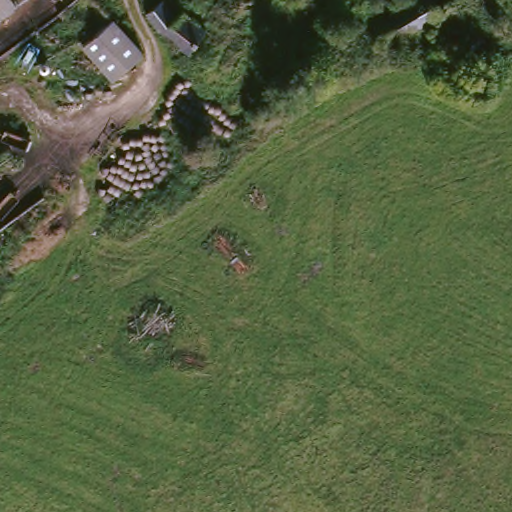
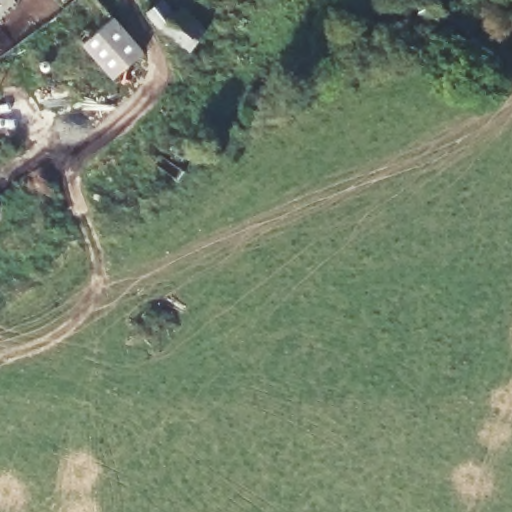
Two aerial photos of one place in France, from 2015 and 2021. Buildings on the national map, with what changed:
unchanged [(91,22),(80,30),(54,0),(92,0),(101,12),(91,22)]
unchanged [(387,40),(383,34),(372,39),(362,25),(405,0),(454,0),(445,6),(432,14),(394,35),(387,40)]
unchanged [(478,0),(498,35),(478,49),(451,64),(428,26),(439,17),(469,0),(478,0)]
unchanged [(0,15),(0,4),(6,11),(0,15)]
unchanged [(172,20),(176,20),(203,39),(189,57),(137,21),(152,5),(172,20)]
unchanged [(91,22),(101,12),(110,22),(140,56),(118,75),(80,30),(91,22)]

